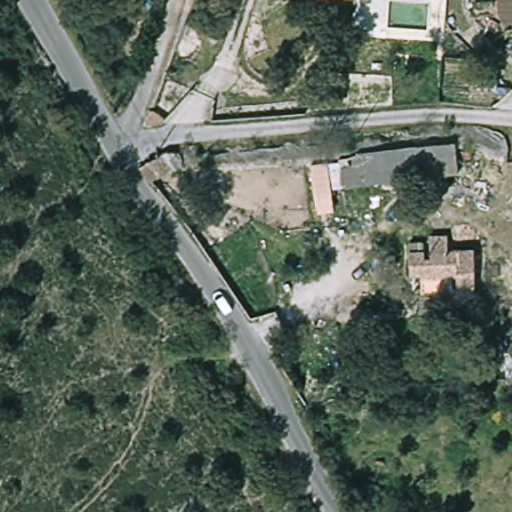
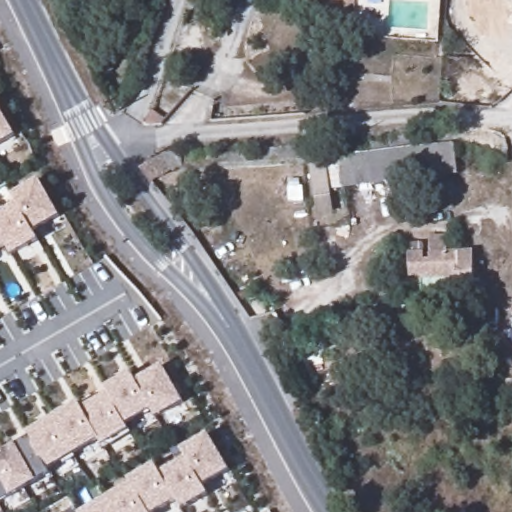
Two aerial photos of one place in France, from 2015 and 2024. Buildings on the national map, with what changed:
new [(15,135),(0,145),(0,110),(15,135)]
unchanged [(156,182),(154,180),(141,163),(157,154),(162,152),(166,152),(187,150),(196,166),(177,174),(167,178),(156,182)]
unchanged [(329,160),(338,161),(338,157),(396,155),(457,151),(459,185),(408,187),(331,190),(329,160)]
new [(60,216),(32,230),(37,239),(10,255),(5,247),(0,250),(0,212),(15,204),(11,195),(38,179),(60,216)]
unchanged [(473,250),(475,291),(410,293),(408,252),(431,251),(430,236),(446,236),(447,250),(461,250),(473,250)]
new [(157,418),(151,410),(125,425),(128,430),(101,447),(97,440),(47,469),(48,472),(37,479),(37,481),(10,497),(10,496),(0,501),(0,454),(27,438),(23,433),(78,402),(80,407),(105,392),(102,387),(130,371),(135,379),(162,365),(182,402),(157,418)]
new [(202,485),(207,495),(181,510),(176,501),(157,512),(81,512),(128,483),(127,480),(154,463),(159,471),(184,457),(179,450),(207,433),(229,470),(202,485)]
new [(78,512),(70,512),(76,508),(78,512)]

